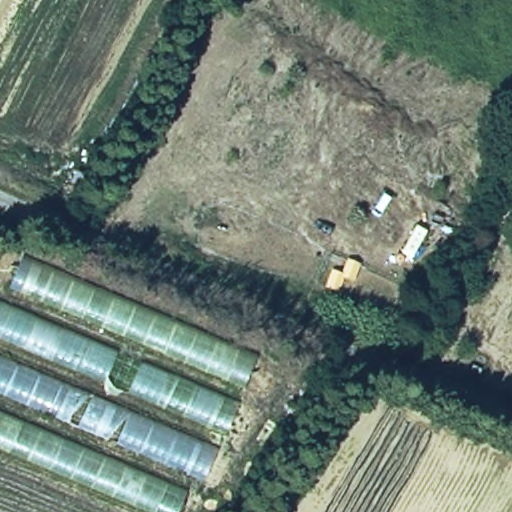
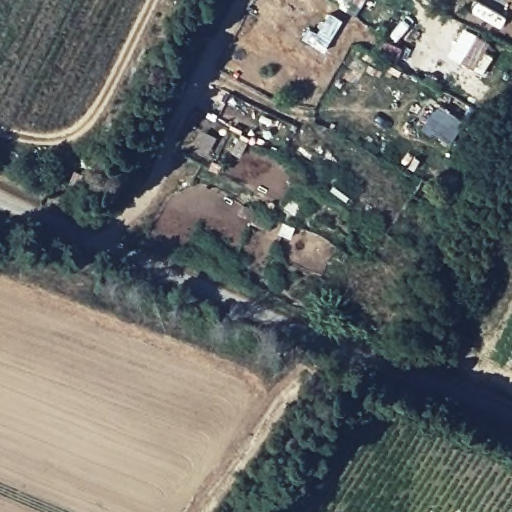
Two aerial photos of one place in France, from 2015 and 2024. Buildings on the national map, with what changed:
new [(0,0),(9,0),(0,19),(0,0)]
demolished [(0,302),(19,246),(254,352),(178,512),(154,512),(0,442),(0,302)]

